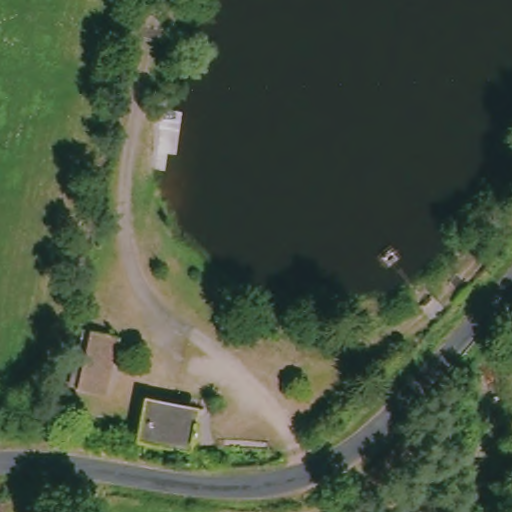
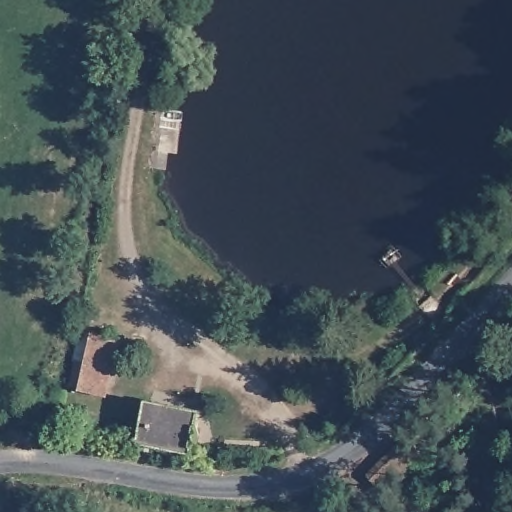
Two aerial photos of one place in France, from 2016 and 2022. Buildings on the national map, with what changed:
unchanged [(115,339),(102,397),(77,392),(94,334),(115,339)]
unchanged [(179,447),(143,431),(145,428),(156,402),(195,421),(192,427),(179,447)]

